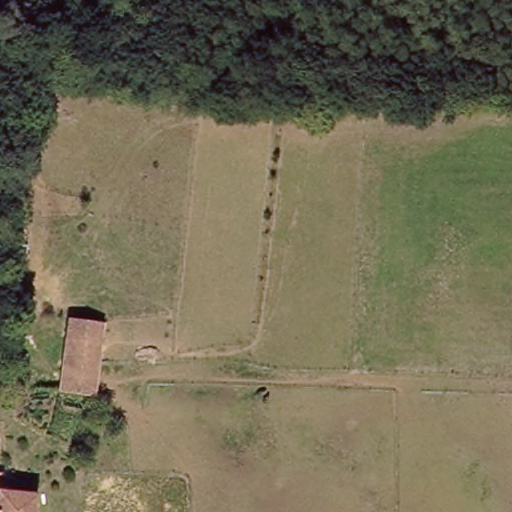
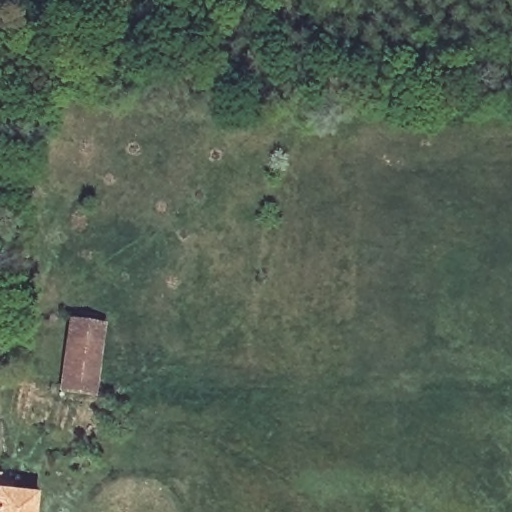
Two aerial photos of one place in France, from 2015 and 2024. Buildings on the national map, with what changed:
unchanged [(104,325),(93,400),(54,394),(65,320),(104,325)]
unchanged [(34,512),(0,512),(0,497),(35,498),(34,512)]

